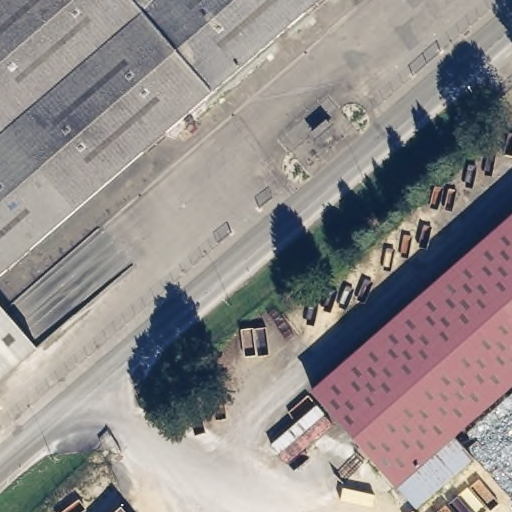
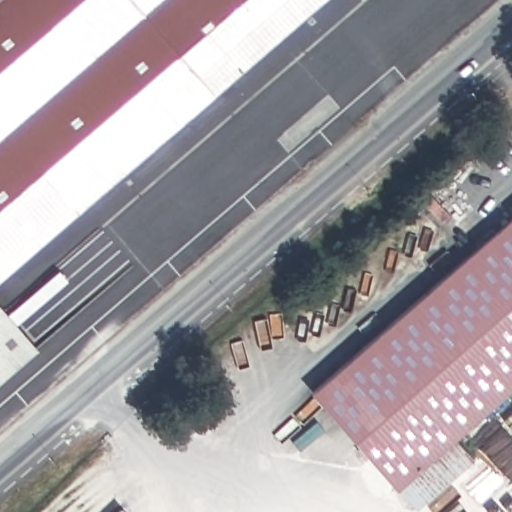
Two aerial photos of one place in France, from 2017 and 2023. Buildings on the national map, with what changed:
unchanged [(0,279),(0,0),(325,0),(0,279)]
unchanged [(512,387),(454,437),(473,459),(417,510),(313,392),(512,217),(512,387)]
unchanged [(41,348),(0,383),(0,301),(41,348)]
unchanged [(231,412),(219,401),(246,372),(257,384),(231,412)]
unchanged [(122,512),(116,512),(120,509),(122,512)]

